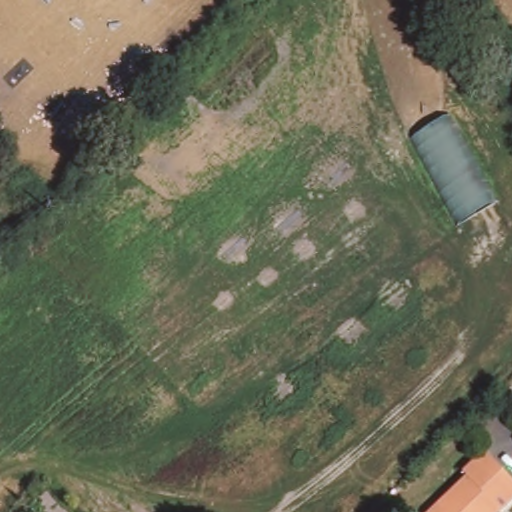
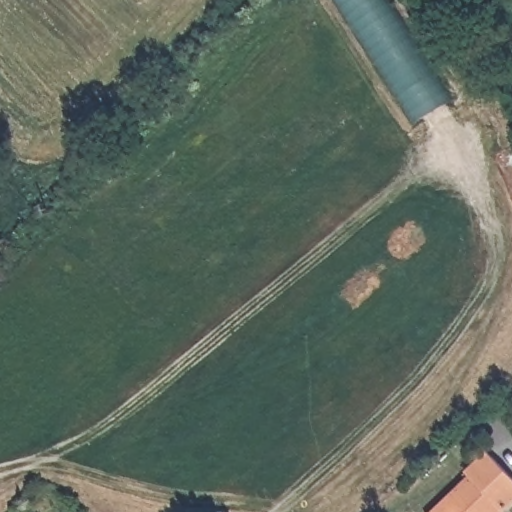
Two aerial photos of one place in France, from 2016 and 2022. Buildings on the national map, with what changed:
new [(333,0),(334,0),(389,0),(455,97),(414,124),(333,0)]
demolished [(460,222),(415,134),(452,114),(498,203),(460,222)]
unchanged [(475,468),(497,451),(512,471),(512,506),(504,512),(434,512),(432,510),(479,474),(475,468)]

